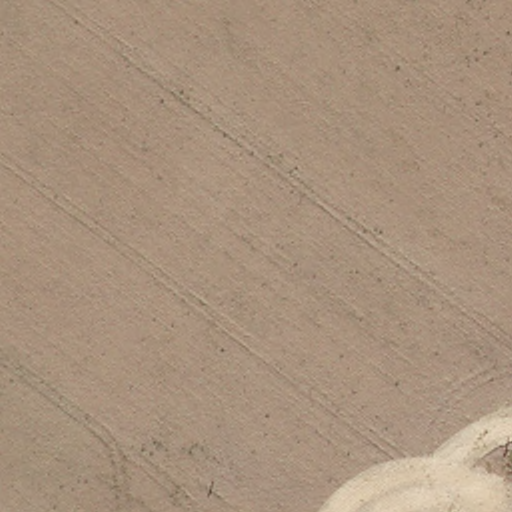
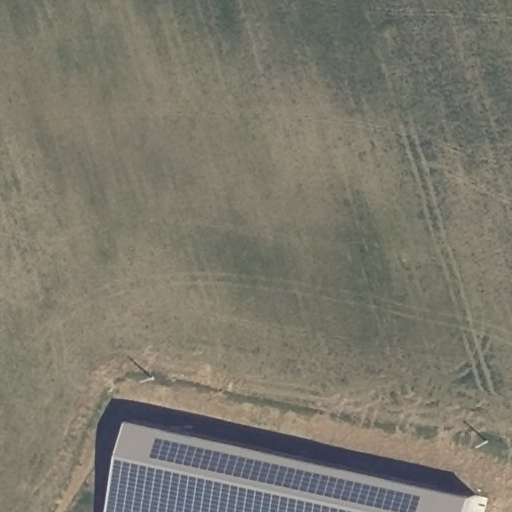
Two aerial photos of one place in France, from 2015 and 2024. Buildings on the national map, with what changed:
new [(462,512),(108,512),(126,424),(465,498),(462,512)]

